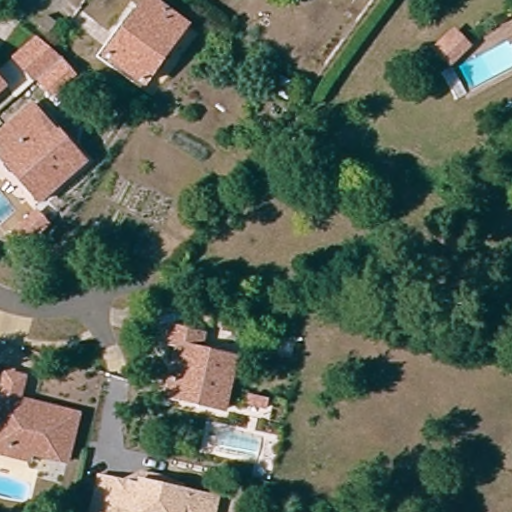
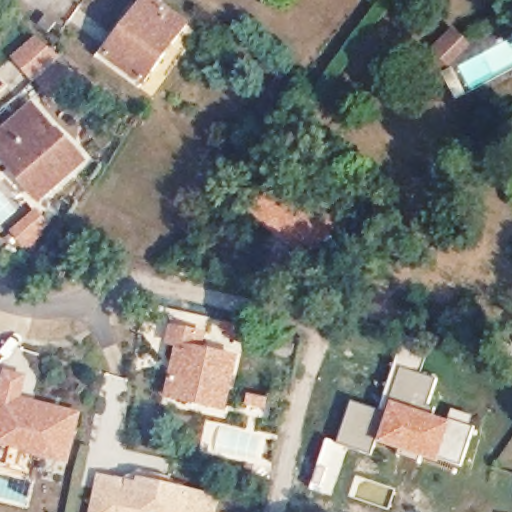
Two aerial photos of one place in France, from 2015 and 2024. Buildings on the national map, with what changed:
unchanged [(131,30),(125,24),(136,9),(144,15),(155,0),(190,27),(150,85),(112,58),(131,30)]
unchanged [(457,35),(466,44),(447,61),(439,52),(457,35)]
unchanged [(37,79),(34,82),(11,57),(35,37),(62,58),(78,75),(53,97),(37,79)]
unchanged [(0,88),(0,80),(4,84),(0,88)]
unchanged [(0,143),(0,134),(35,103),(87,162),(43,202),(28,185),(2,156),(7,151),(0,143)]
new [(47,214),(59,227),(51,233),(36,247),(25,235),(40,221),(47,214)]
unchanged [(445,225),(467,241),(457,257),(435,241),(445,225)]
unchanged [(170,387),(180,341),(167,339),(171,322),(203,328),(200,344),(236,351),(225,405),(206,401),(168,393),(170,387)]
new [(402,343),(428,352),(421,371),(439,377),(430,412),(390,399),(386,412),(378,409),(402,343)]
unchanged [(0,409),(12,367),(29,372),(22,394),(35,398),(81,411),(68,456),(35,447),(32,454),(0,444),(0,409)]
unchanged [(278,399),(276,407),(260,404),(261,396),(278,399)]
new [(386,412),(390,399),(430,412),(448,419),(447,422),(450,423),(439,459),(437,464),(375,442),(386,412)]
new [(350,400),(378,409),(386,412),(375,442),(371,455),(335,442),(350,400)]
new [(450,423),(447,422),(448,419),(451,408),(473,416),(471,423),(474,424),(460,467),(439,459),(450,423)]
unchanged [(99,476),(138,483),(140,472),(167,476),(166,484),(219,495),(215,512),(92,512),(99,476)]

